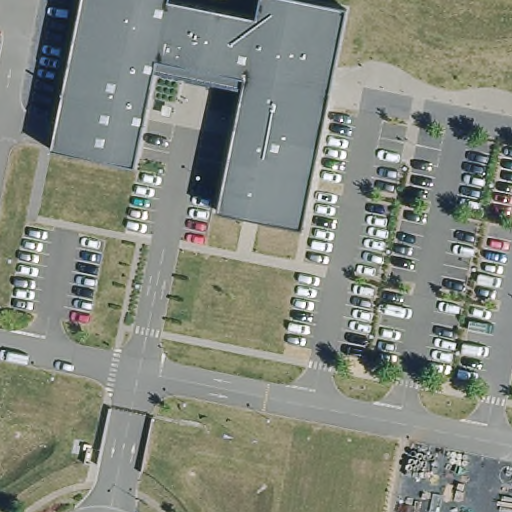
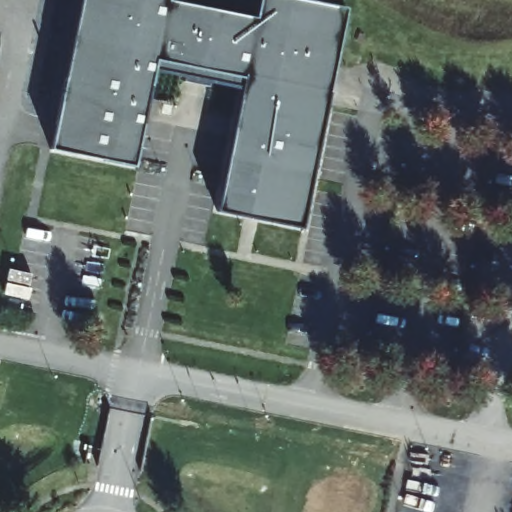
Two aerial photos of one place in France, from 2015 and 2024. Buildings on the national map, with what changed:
unchanged [(131,167),(50,150),(80,0),(164,0),(163,1),(248,17),(253,0),(316,0),(343,5),(301,230),(213,211),(239,88),(151,68),(131,167)]

